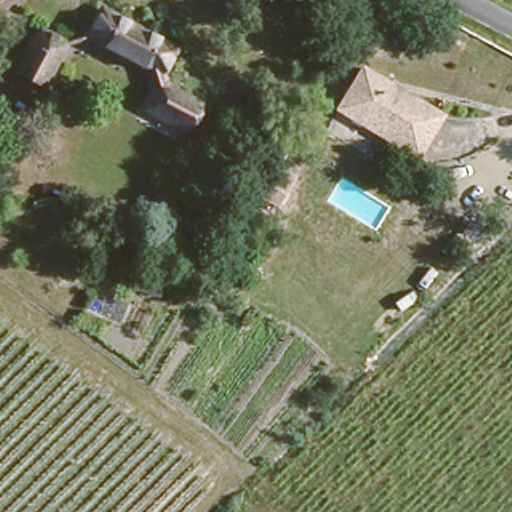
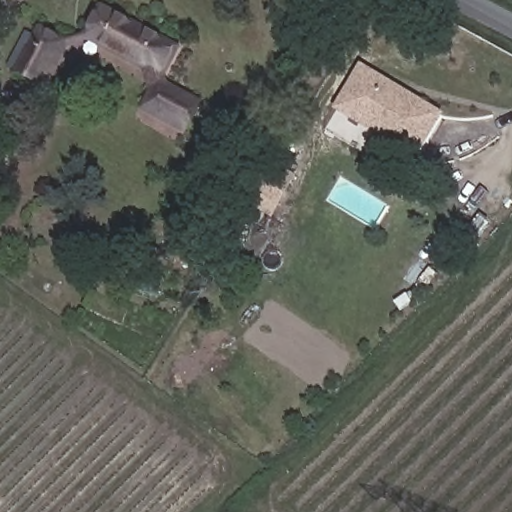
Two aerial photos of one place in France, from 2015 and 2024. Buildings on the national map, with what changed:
unchanged [(175,49),(160,76),(166,98),(199,116),(189,134),(142,108),(152,91),(146,70),(85,38),(99,11),(175,49)]
unchanged [(39,27),(67,41),(46,79),(17,65),(35,35),(39,27)]
unchanged [(416,160),(337,111),(362,71),(389,88),(386,91),(393,96),(396,91),(441,120),(416,160)]
unchanged [(131,272),(138,253),(161,262),(154,280),(131,272)]

